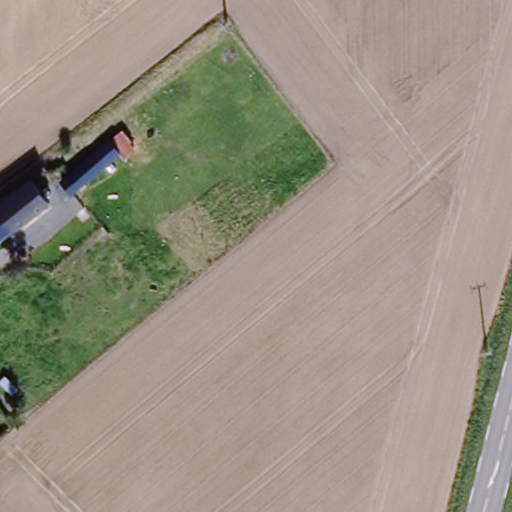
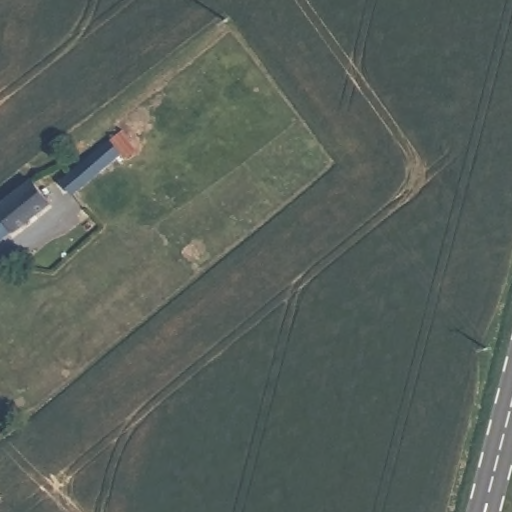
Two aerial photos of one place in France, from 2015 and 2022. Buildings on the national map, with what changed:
unchanged [(62,186),(105,155),(115,169),(72,199),(62,186)]
unchanged [(48,213),(0,243),(0,204),(28,183),(48,213)]

